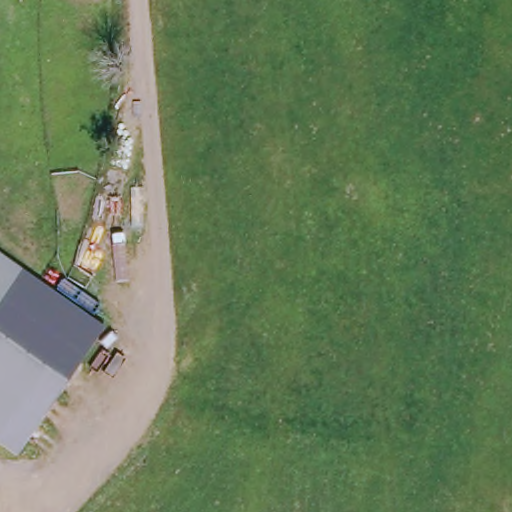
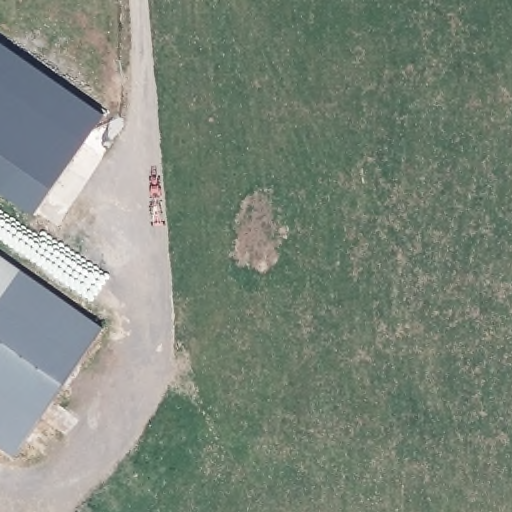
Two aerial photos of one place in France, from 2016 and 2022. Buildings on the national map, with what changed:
new [(0,187),(0,41),(106,113),(37,213),(0,187)]
unchanged [(24,273),(0,306),(0,255),(24,273)]
unchanged [(24,273),(103,332),(17,459),(0,447),(0,306),(24,273)]

